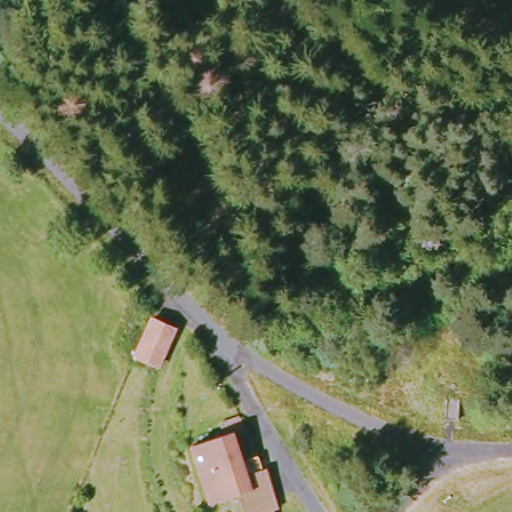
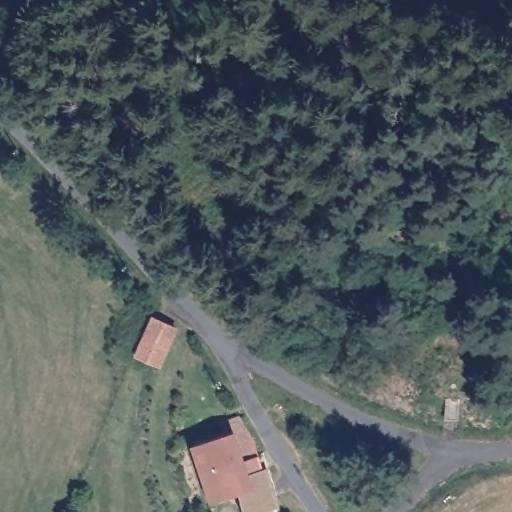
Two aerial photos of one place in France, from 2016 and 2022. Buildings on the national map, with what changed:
unchanged [(155,314),(158,315),(176,324),(161,355),(159,360),(141,351),(137,349),(154,313),(155,314)]
unchanged [(434,400),(430,388),(433,375),(442,365),(453,363),(462,366),(471,373),(472,385),(471,395),(463,404),(458,405),(457,418),(443,416),(444,406),(434,400)]
unchanged [(259,473),(263,472),(276,510),(272,512),(238,512),(233,500),(213,507),(188,450),(221,438),(218,427),(233,422),(246,442),(259,473)]

